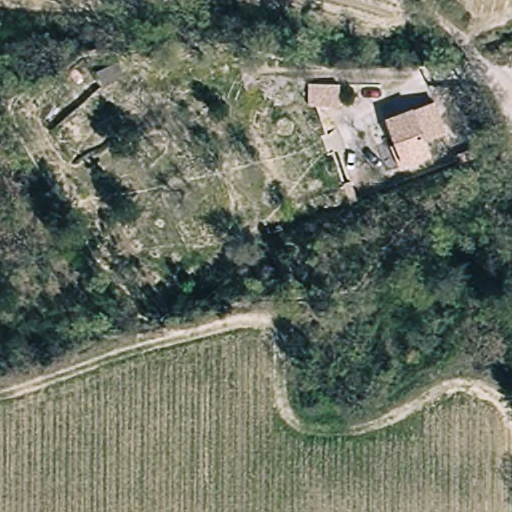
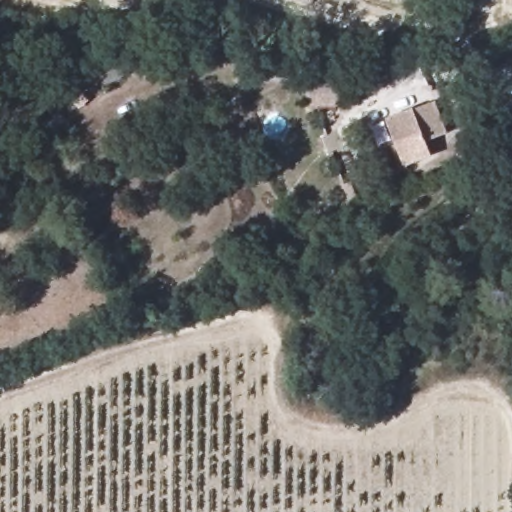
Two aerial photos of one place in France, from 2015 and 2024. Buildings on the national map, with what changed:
unchanged [(93,69),(119,60),(130,78),(104,88),(93,69)]
unchanged [(311,84),(341,83),(341,103),(312,104),(311,84)]
unchanged [(447,132),(427,139),(432,154),(405,163),(387,170),(369,125),(386,118),(415,107),(435,100),(447,132)]

